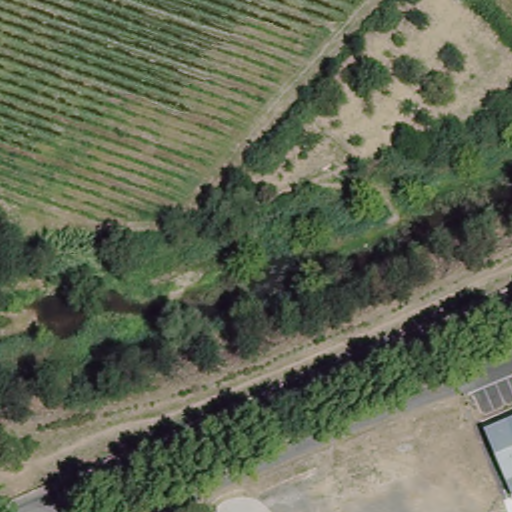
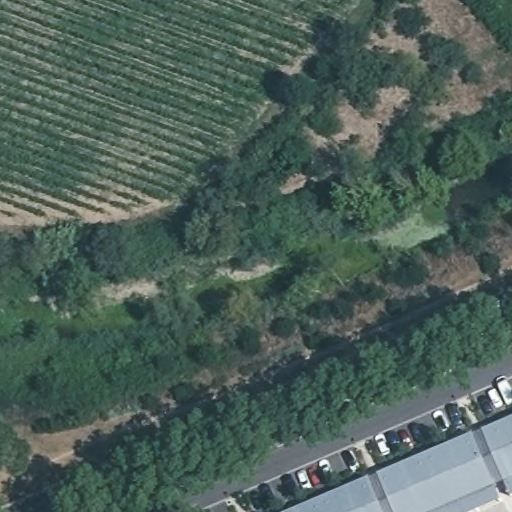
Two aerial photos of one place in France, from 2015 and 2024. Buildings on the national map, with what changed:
unchanged [(483,432),(512,419),(512,494),(508,486),(483,432)]
new [(295,512),(483,432),(507,483),(497,487),(504,503),(481,512),(295,512)]

